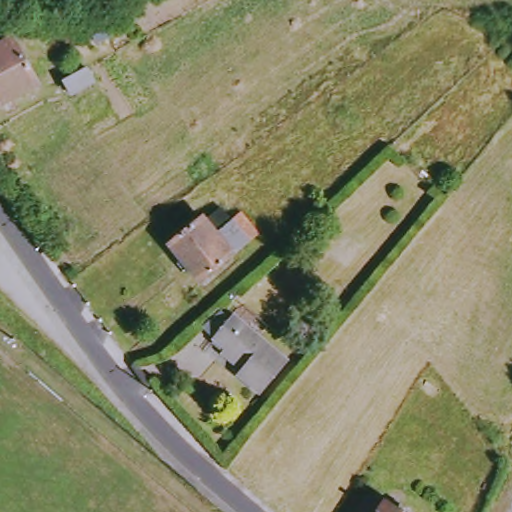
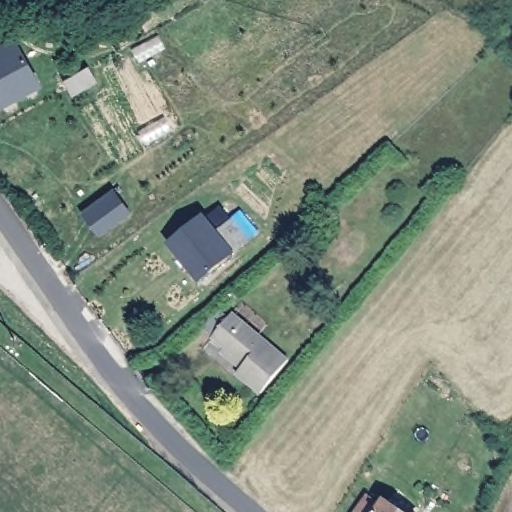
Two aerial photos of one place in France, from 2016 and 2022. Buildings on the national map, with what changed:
unchanged [(0,29),(4,27),(14,42),(18,40),(40,85),(0,106),(0,29)]
unchanged [(68,91),(65,84),(61,77),(85,65),(88,71),(92,79),(68,91)]
new [(112,188),(130,211),(98,234),(82,211),(112,188)]
unchanged [(254,235),(202,277),(174,240),(207,215),(219,231),(239,217),(254,235)]
unchanged [(258,393),(239,369),(246,363),(221,328),(247,309),(291,366),(258,393)]
unchanged [(388,506),(392,500),(410,512),(362,512),(372,495),(388,506)]

